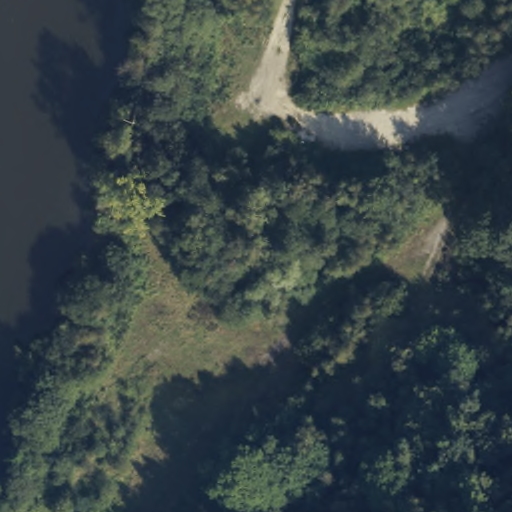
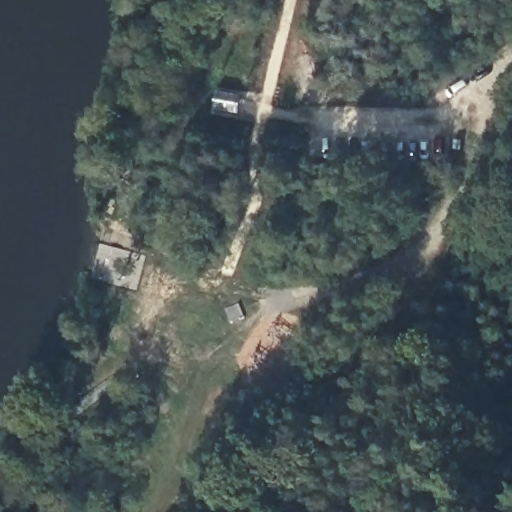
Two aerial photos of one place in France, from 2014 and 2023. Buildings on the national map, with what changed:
unchanged [(84,512),(26,512),(29,506),(34,508),(42,492),(84,512)]

